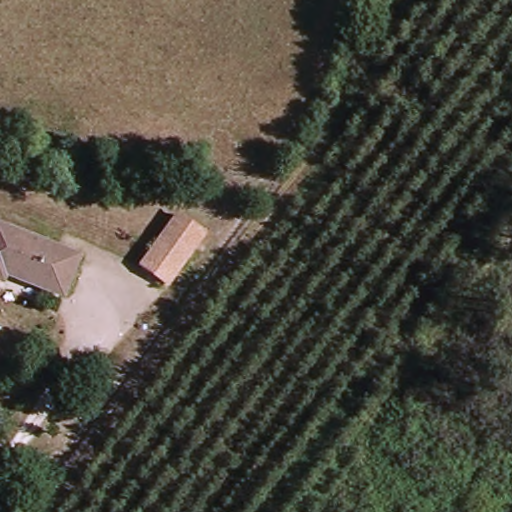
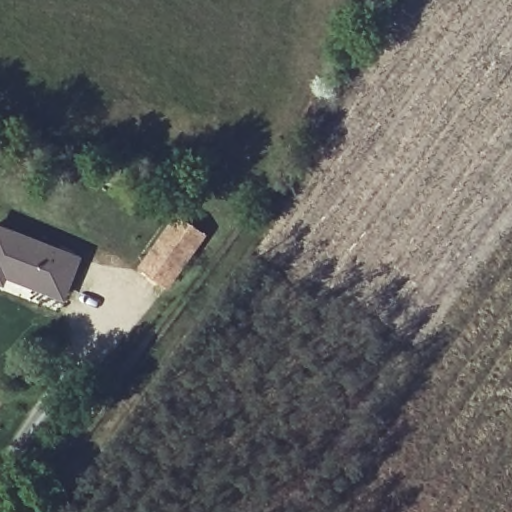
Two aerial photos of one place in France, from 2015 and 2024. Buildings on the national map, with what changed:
unchanged [(208,238),(166,286),(142,265),(182,216),(208,238)]
unchanged [(0,279),(0,223),(75,262),(56,300),(4,272),(0,279)]

